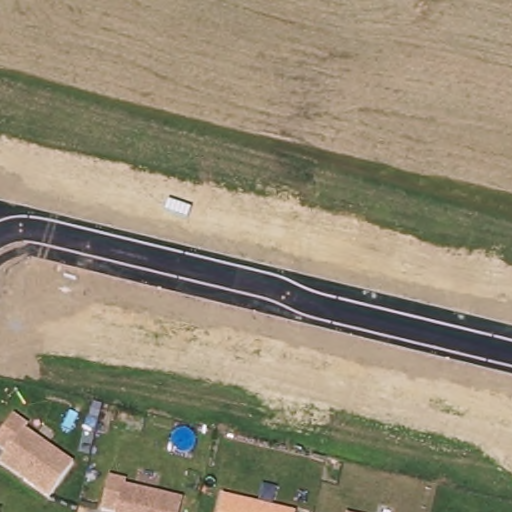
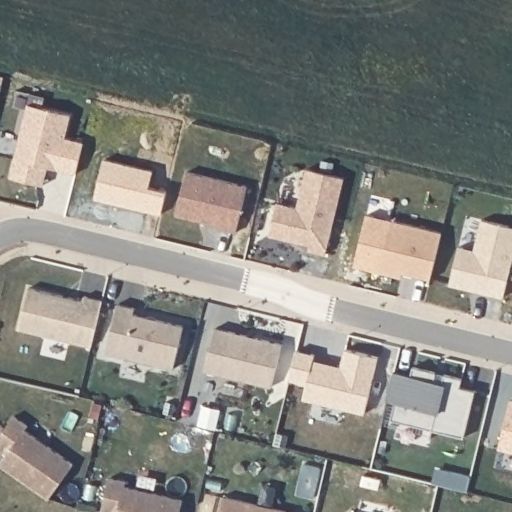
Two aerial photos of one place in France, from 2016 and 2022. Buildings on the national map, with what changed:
new [(72,114),(66,137),(84,141),(77,173),(48,166),(43,184),(11,176),(29,104),(72,114)]
new [(155,170),(151,187),(168,191),(162,213),(97,198),(105,157),(155,170)]
new [(277,202),(297,207),(306,168),(343,177),(325,254),(307,250),(309,245),(268,235),(277,202)]
new [(187,169),(247,183),(236,229),(217,224),(217,222),(177,212),(187,169)]
new [(475,249),(482,218),(512,225),(512,262),(503,296),(451,284),(459,245),(475,249)]
new [(442,231),(431,277),(402,271),(402,276),(379,270),(392,219),(442,231)]
new [(27,287),(82,300),(83,295),(102,300),(91,346),(17,328),(27,287)]
new [(117,303),(134,307),(132,313),(183,325),(172,368),(105,352),(117,303)]
new [(247,335),(256,337),(282,344),(271,386),(204,370),(215,327),(247,335)]
new [(296,349),(314,353),(312,363),(339,370),(345,348),(377,356),(364,413),(302,398),(306,383),(288,378),(296,349)]
new [(397,400),(388,399),(396,370),(412,374),(414,365),(437,372),(435,379),(443,381),(446,372),(462,377),(459,387),(473,391),(462,434),(392,416),(397,400)]
new [(511,399),(512,400),(512,451),(498,448),(511,399)]
unchanged [(0,451),(0,433),(12,416),(26,426),(22,430),(71,464),(47,499),(22,481),(0,467),(0,460),(5,454),(0,451)]
unchanged [(102,511),(110,477),(127,481),(125,486),(183,499),(180,512),(104,512),(102,511)]
unchanged [(223,496),(290,512),(219,512),(223,496)]

